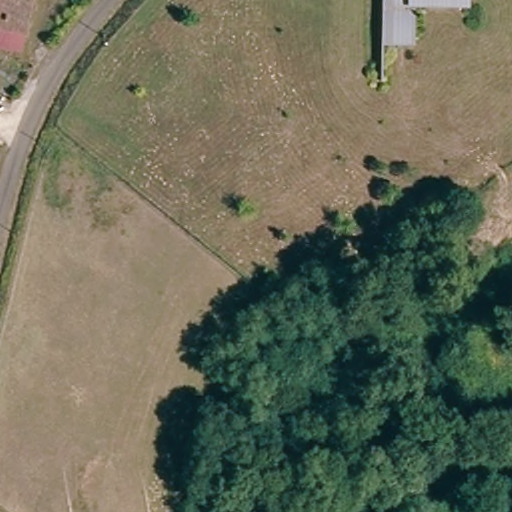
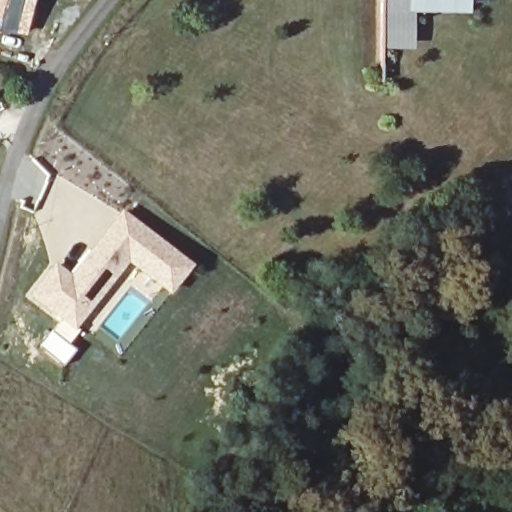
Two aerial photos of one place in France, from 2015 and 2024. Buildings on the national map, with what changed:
unchanged [(0,29),(0,0),(29,0),(22,34),(0,29)]
unchanged [(413,24),(383,22),(385,0),(415,0),(413,24)]
new [(193,265),(169,294),(130,263),(74,329),(30,295),(55,262),(70,273),(122,209),(193,265)]

